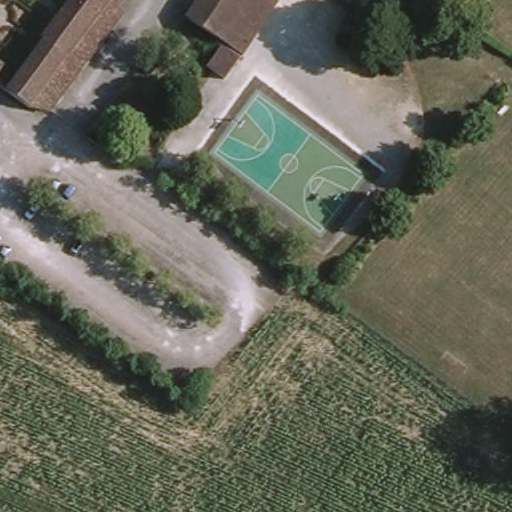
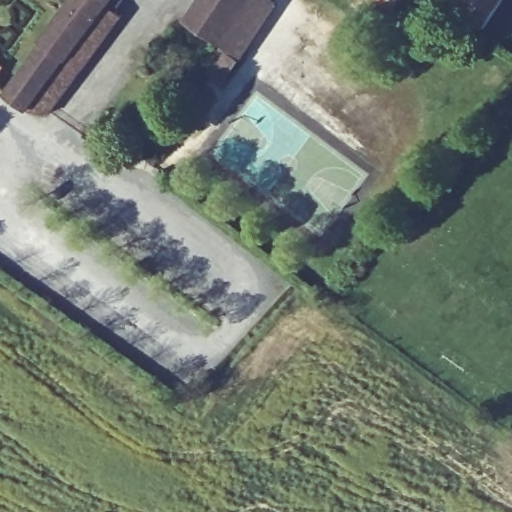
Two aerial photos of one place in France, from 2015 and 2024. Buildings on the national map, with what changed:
unchanged [(111,34),(52,112),(32,110),(16,100),(55,47),(90,0),(117,0),(122,6),(105,30),(111,34)]
unchanged [(226,37),(189,12),(198,0),(276,0),(280,3),(227,77),(209,65),(226,37)]
new [(438,0),(501,0),(483,30),(438,0)]
unchanged [(0,79),(0,63),(7,68),(0,79)]

